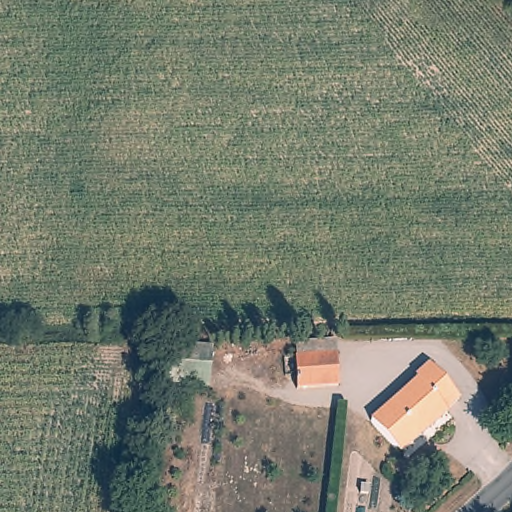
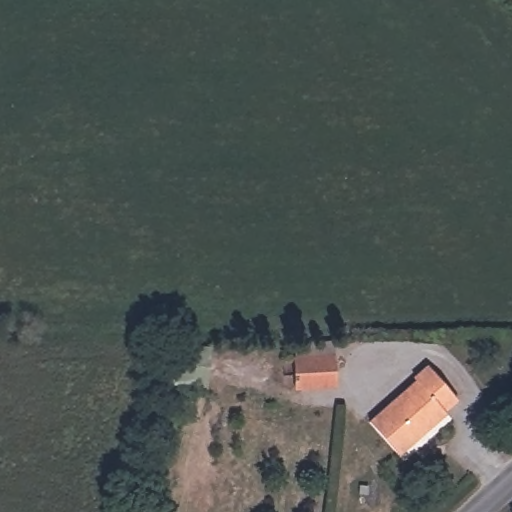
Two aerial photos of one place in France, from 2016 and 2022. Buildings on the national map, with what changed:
unchanged [(330,392),(289,393),(288,364),(330,363),(330,392)]
unchanged [(446,413),(446,417),(401,459),(372,428),(418,386),(416,383),(431,370),(459,401),(446,413)]

